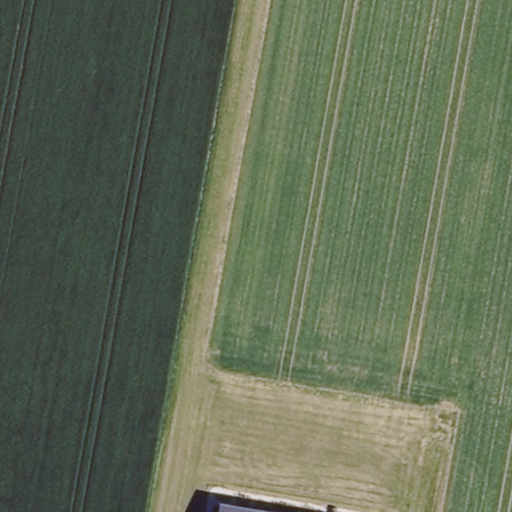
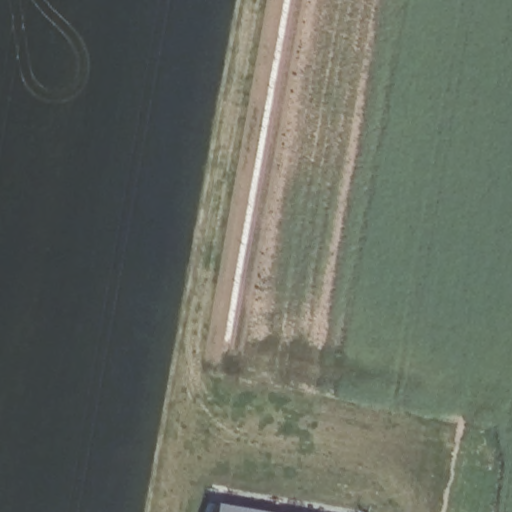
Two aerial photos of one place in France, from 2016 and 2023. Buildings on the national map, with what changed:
unchanged [(267,512),(219,512),(220,504),(267,512)]

